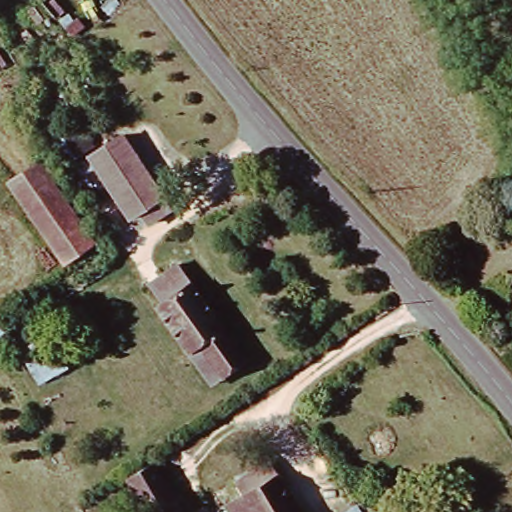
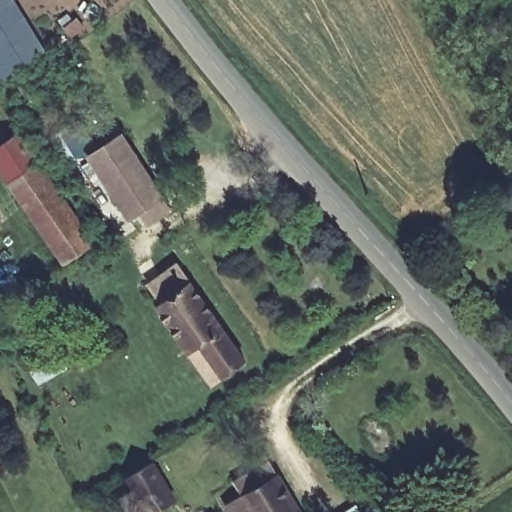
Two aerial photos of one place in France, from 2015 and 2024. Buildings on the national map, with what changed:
new [(48,55),(2,82),(0,78),(0,0),(15,0),(48,55)]
unchanged [(166,195),(133,217),(94,158),(92,154),(124,134),(126,136),(166,195)]
unchanged [(90,242),(62,261),(7,182),(35,162),(90,242)]
unchanged [(158,302),(162,299),(152,282),(182,262),(244,360),(220,376),(210,383),(189,351),(158,302)]
unchanged [(25,362),(30,358),(25,345),(51,333),(67,367),(35,385),(25,362)]
unchanged [(138,512),(119,482),(143,466),(166,499),(170,506),(161,512),(138,512)]
unchanged [(270,466),(299,512),(249,512),(243,502),(235,489),(270,466)]
unchanged [(249,512),(230,512),(243,502),(249,512)]

